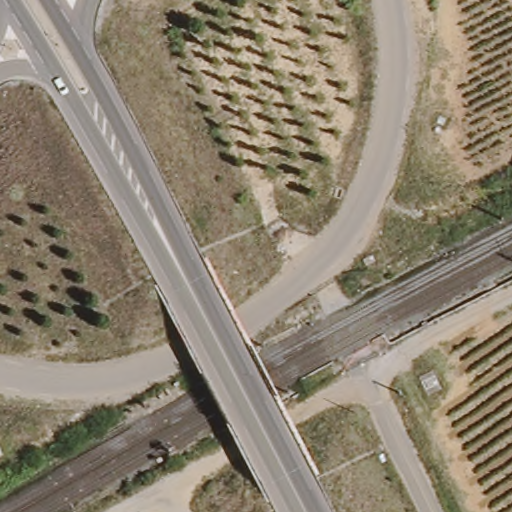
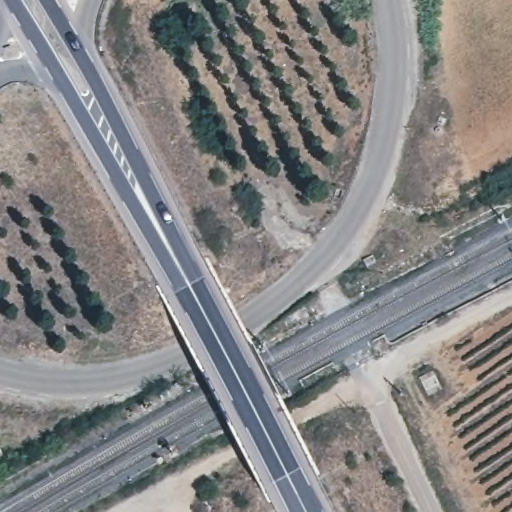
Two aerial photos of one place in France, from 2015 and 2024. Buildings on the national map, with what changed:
unchanged [(445,388),(429,397),(418,377),(435,370),(445,388)]

